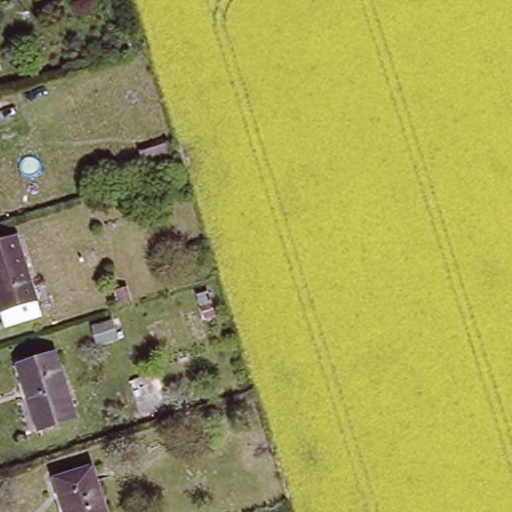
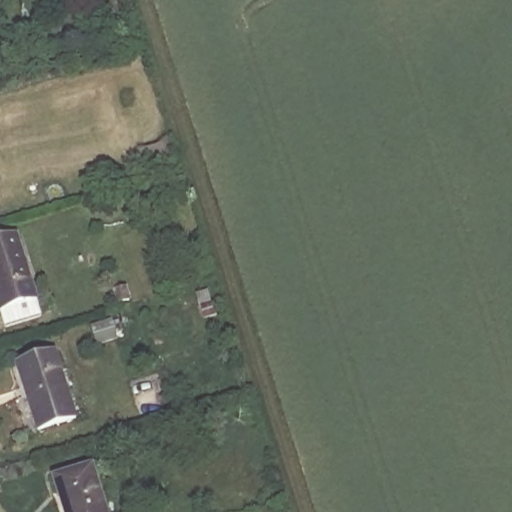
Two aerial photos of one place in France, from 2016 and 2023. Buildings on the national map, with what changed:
unchanged [(0,243),(17,237),(37,300),(5,311),(0,297),(0,243)]
unchanged [(196,298),(211,293),(218,317),(204,322),(196,298)]
unchanged [(76,417),(37,430),(26,395),(22,396),(12,366),(21,363),(55,352),(76,417)]
unchanged [(107,512),(71,512),(70,508),(67,510),(56,476),(92,464),(107,512)]

